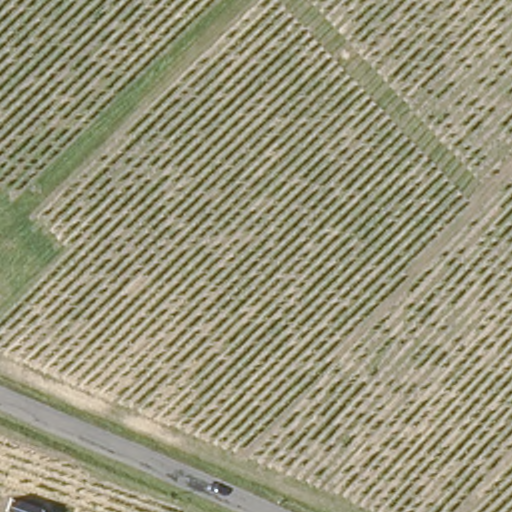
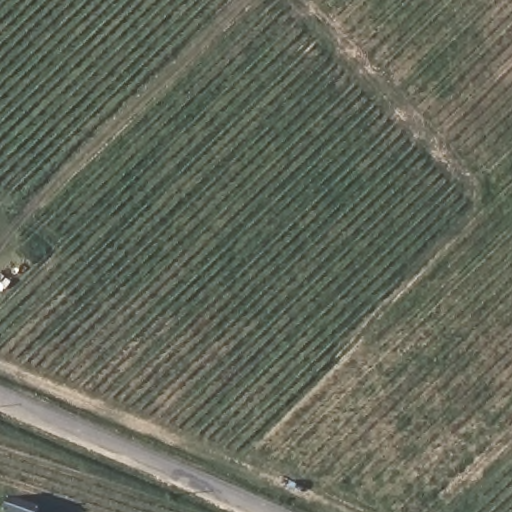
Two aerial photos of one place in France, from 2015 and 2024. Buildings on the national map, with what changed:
unchanged [(4,512),(9,494),(44,510),(42,512),(4,512)]

